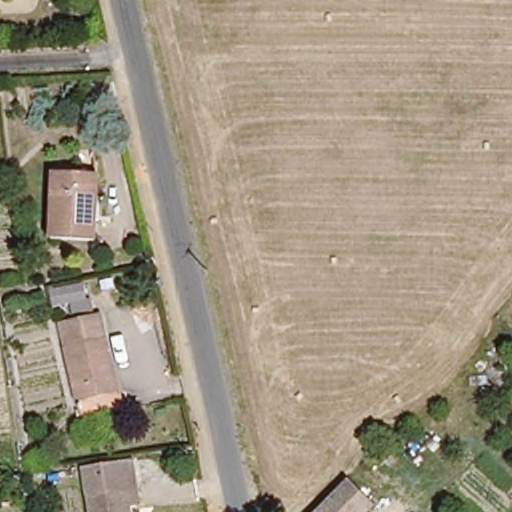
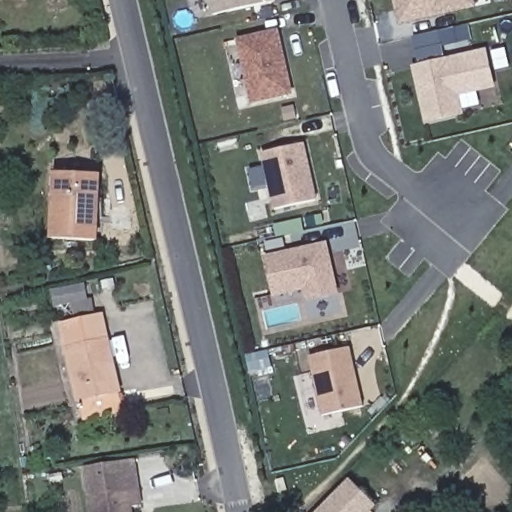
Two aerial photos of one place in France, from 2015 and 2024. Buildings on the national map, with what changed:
new [(275,2),(213,16),(209,0),(274,0),(275,2)]
new [(474,6),(400,23),(395,0),(473,0),(474,6)]
new [(276,32),(291,94),(252,103),(238,41),(276,32)]
new [(486,52),(494,87),(457,96),(462,115),(427,122),(415,68),(486,52)]
new [(302,144),(315,201),(275,210),(262,154),(302,144)]
unchanged [(98,176),(95,238),(52,236),(56,173),(98,176)]
new [(307,321),(301,297),(275,303),(273,295),(265,259),(325,245),(336,293),(340,313),(307,321)]
unchanged [(90,300),(51,306),(45,290),(83,282),(90,300)]
unchanged [(97,325),(113,401),(75,409),(59,333),(97,325)]
new [(348,348),(362,408),(322,417),(308,357),(348,348)]
unchanged [(90,462),(130,456),(139,505),(131,507),(132,512),(89,512),(80,464),(90,462)]
unchanged [(370,507),(364,512),(313,512),(346,482),(370,507)]

